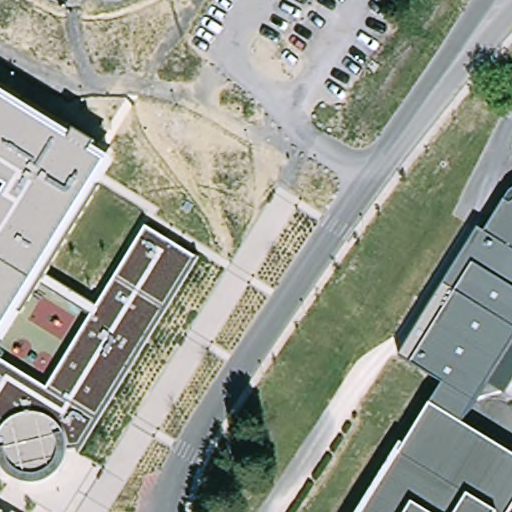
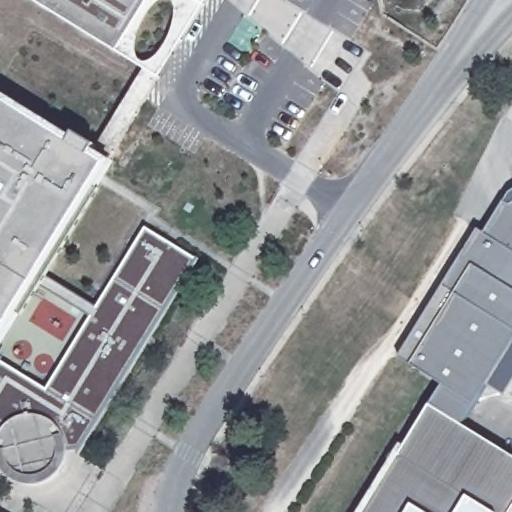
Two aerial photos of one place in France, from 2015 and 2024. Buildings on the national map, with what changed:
new [(34,0),(149,0),(118,51),(34,0)]
unchanged [(92,155),(108,165),(94,186),(41,273),(96,307),(145,228),(197,260),(78,455),(74,450),(73,458),(68,471),(63,477),(50,486),(43,488),(29,489),(20,486),(9,480),(3,473),(0,469),(0,361),(47,389),(90,317),(35,284),(0,340),(0,203),(9,189),(0,184),(0,99),(92,155)]
unchanged [(463,425),(432,406),(432,405),(444,386),(416,368),(399,358),(461,256),(468,260),(504,201),(511,205),(512,204),(512,345),(488,385),(463,425)]
unchanged [(432,405),(463,425),(512,455),(512,512),(366,512),(432,405)]

